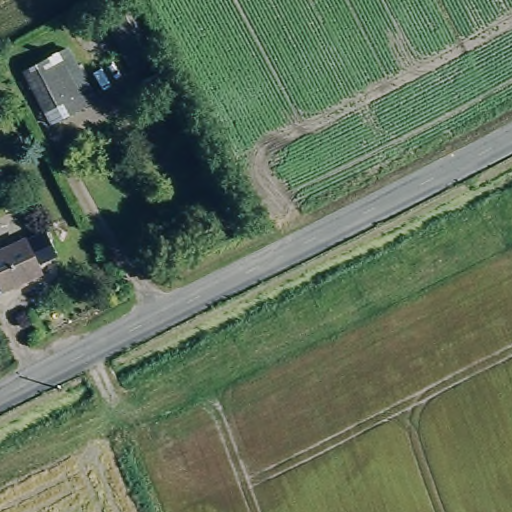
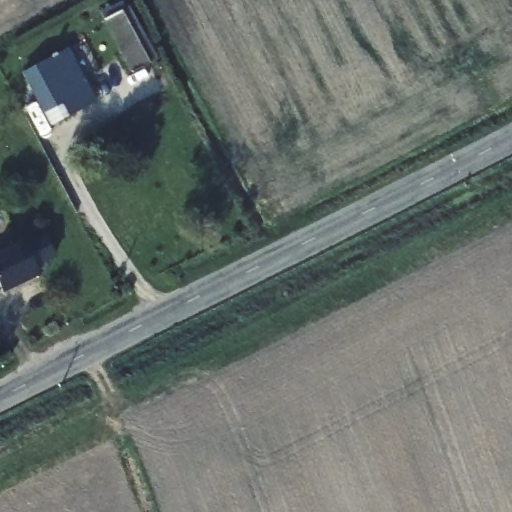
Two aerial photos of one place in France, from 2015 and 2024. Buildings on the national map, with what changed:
unchanged [(138,46),(121,57),(104,21),(120,12),(138,46)]
unchanged [(38,107),(20,76),(68,52),(94,105),(68,120),(51,129),(38,107)]
unchanged [(0,287),(0,247),(20,237),(38,269),(0,287)]

